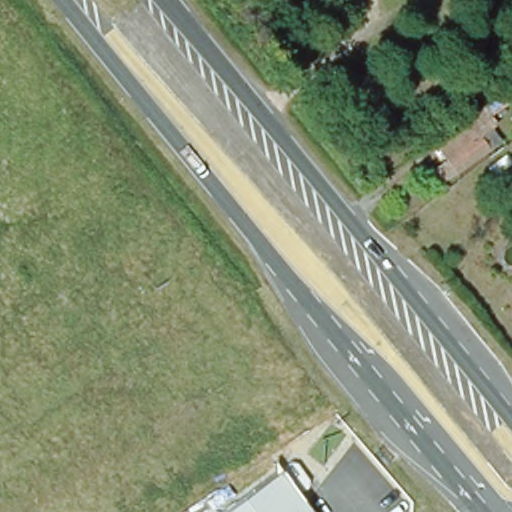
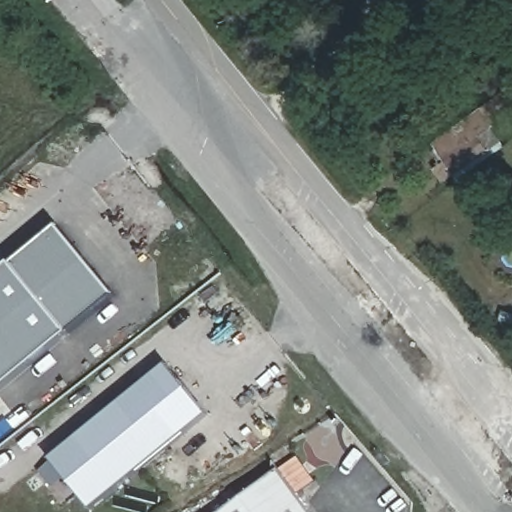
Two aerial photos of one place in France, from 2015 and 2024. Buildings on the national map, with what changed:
unchanged [(433,146),(482,107),(508,146),(462,182),(433,146)]
new [(117,297),(0,392),(0,277),(60,228),(117,297)]
new [(175,362),(214,413),(94,505),(55,453),(175,362)]
unchanged [(309,512),(228,512),(283,474),(309,512)]

